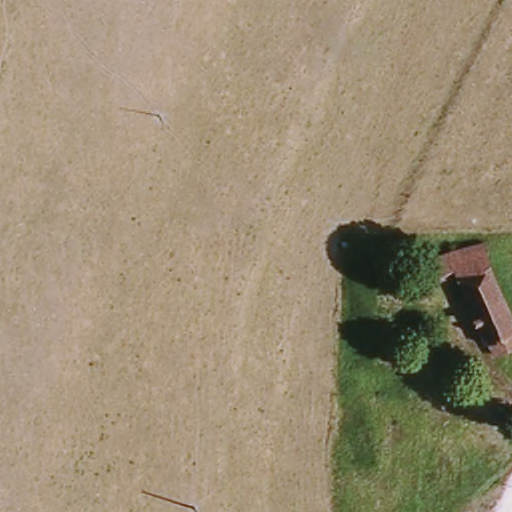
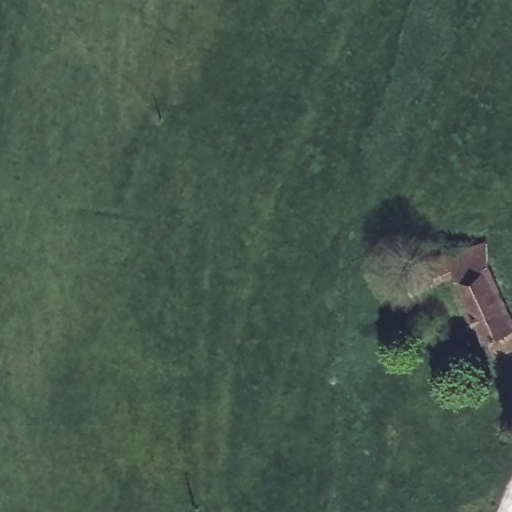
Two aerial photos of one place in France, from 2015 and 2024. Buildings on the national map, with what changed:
unchanged [(432,286),(424,263),(476,243),(512,326),(512,338),(486,350),(456,280),(432,286)]

